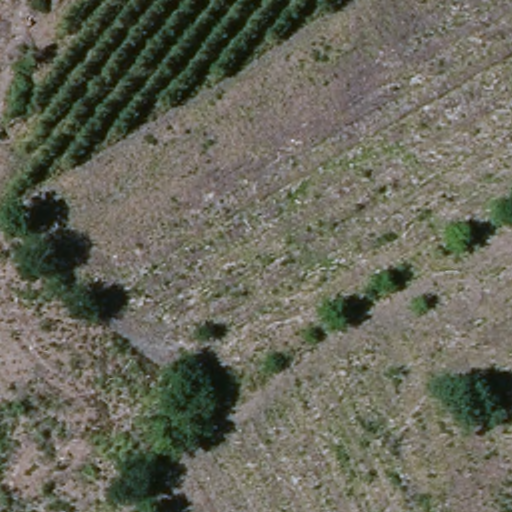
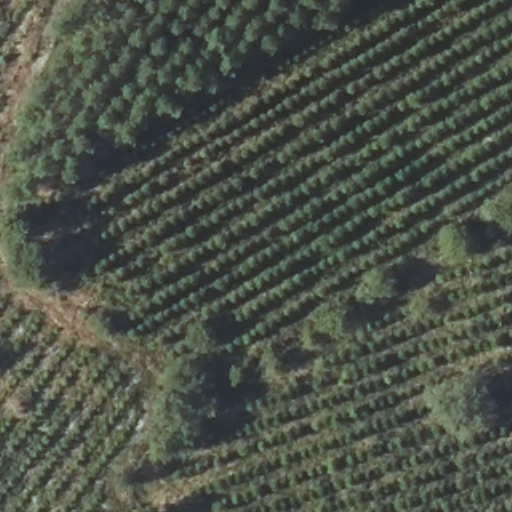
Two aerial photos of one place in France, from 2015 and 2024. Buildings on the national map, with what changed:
[]

